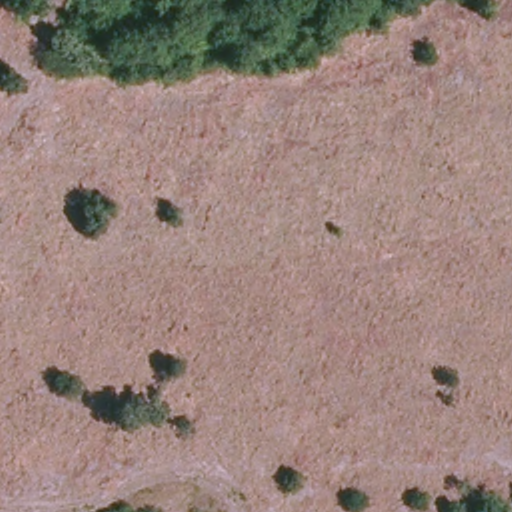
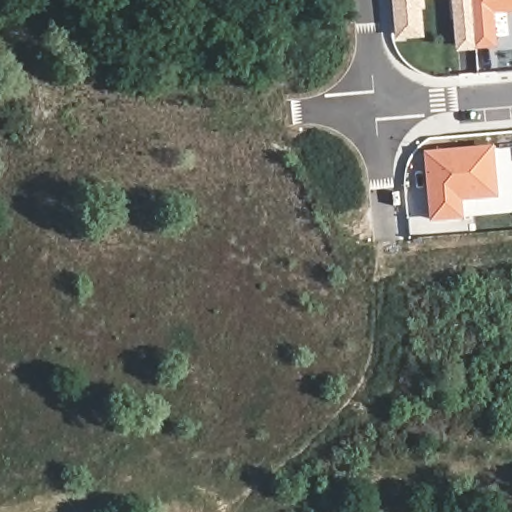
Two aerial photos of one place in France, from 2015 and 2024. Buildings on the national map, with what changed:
new [(396,5),(396,0),(418,0),(418,4),(396,5)]
new [(457,20),(455,0),(472,0),(473,18),(475,45),(459,46),(457,20)]
new [(492,10),(495,43),(475,45),(471,0),(512,0),(512,8),(508,8),(492,10)]
new [(495,197),(458,200),(460,218),(432,220),(426,155),(491,149),(495,197)]

